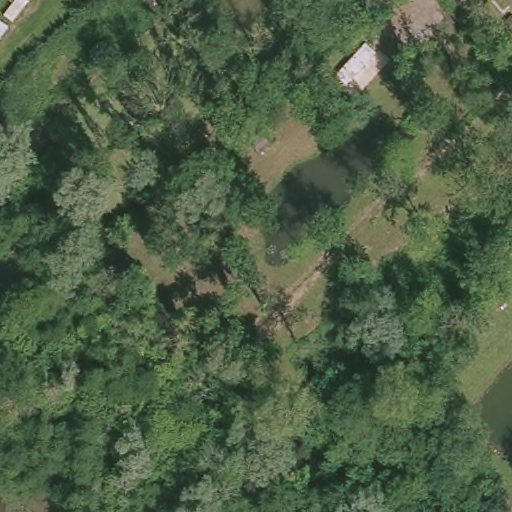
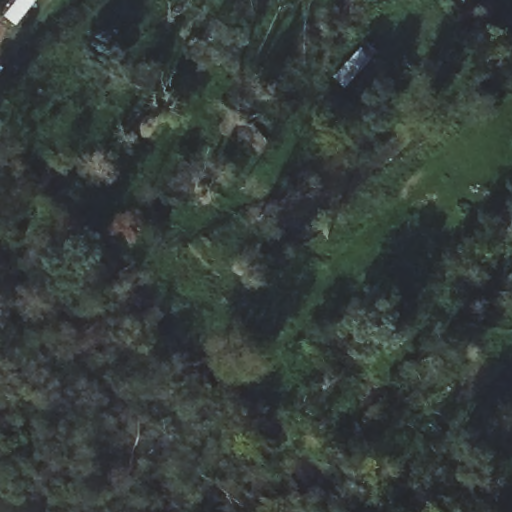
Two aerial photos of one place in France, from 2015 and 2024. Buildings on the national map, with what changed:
unchanged [(362,38),(384,52),(351,85),(337,70),(362,38)]

